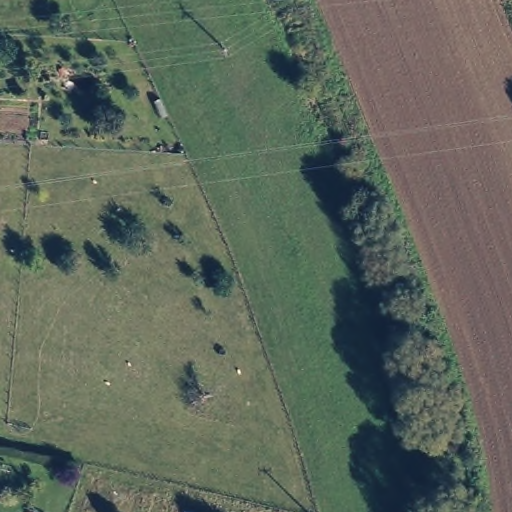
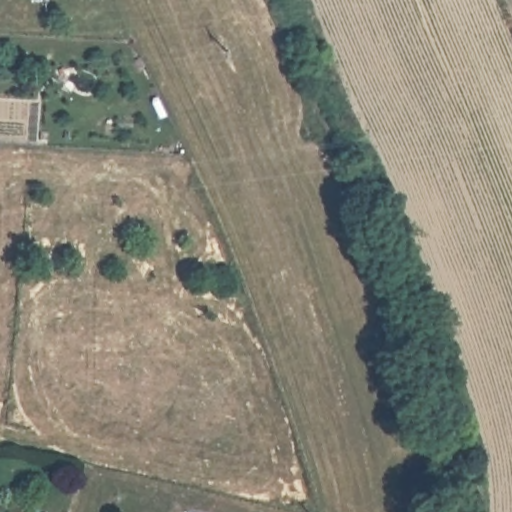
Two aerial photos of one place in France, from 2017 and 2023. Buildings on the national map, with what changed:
[]

